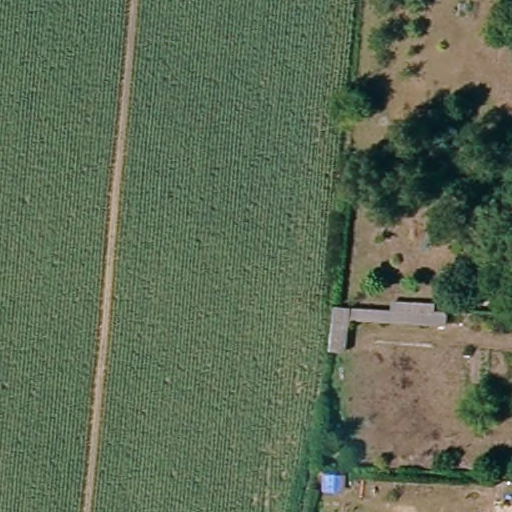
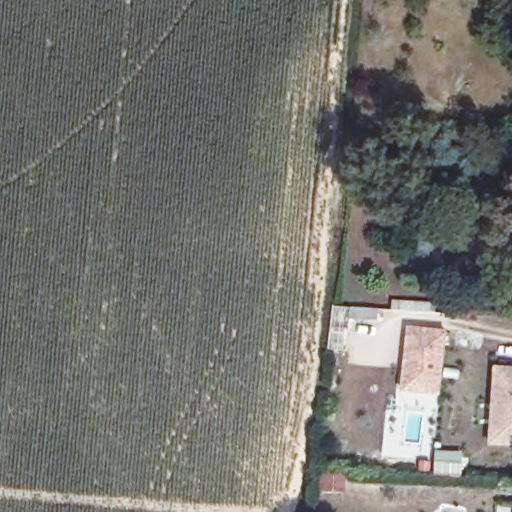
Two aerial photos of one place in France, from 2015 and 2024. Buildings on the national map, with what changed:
unchanged [(343,349),(325,347),(329,307),(347,309),(343,349)]
new [(447,330),(441,396),(397,392),(405,326),(447,330)]
new [(490,367),(512,369),(512,445),(484,443),(486,428),(490,367)]

